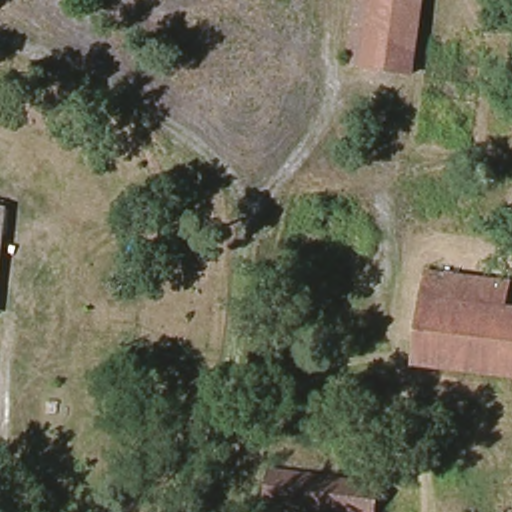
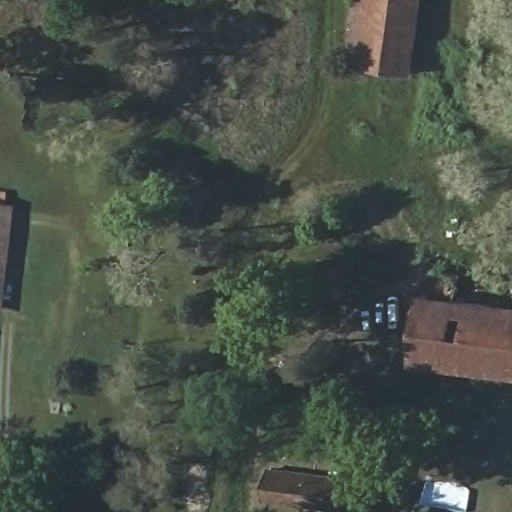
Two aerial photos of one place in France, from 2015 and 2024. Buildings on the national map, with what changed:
unchanged [(350,72),(356,0),(421,0),(414,73),(350,72)]
unchanged [(0,232),(0,207),(13,209),(10,233),(0,232)]
unchanged [(10,233),(0,309),(0,232),(10,233)]
unchanged [(507,285),(503,311),(512,312),(512,376),(419,364),(434,275),(507,285)]
unchanged [(345,512),(337,511),(263,501),(269,469),(346,480),(358,482),(375,484),(371,512),(345,512)]

